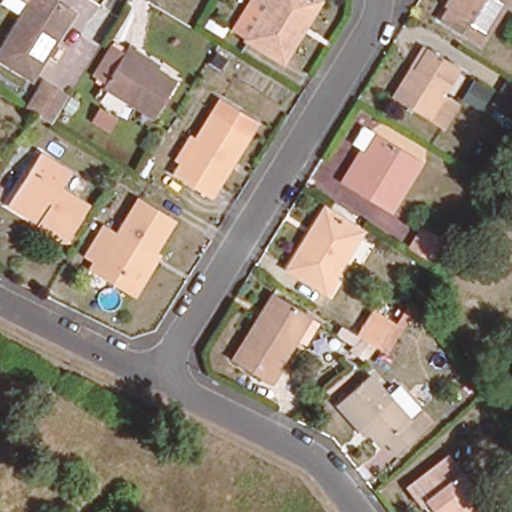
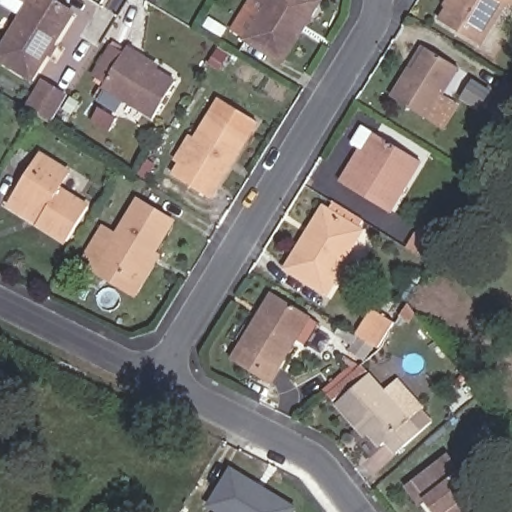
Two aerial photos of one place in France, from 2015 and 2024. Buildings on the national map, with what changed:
unchanged [(30,82),(0,64),(0,54),(28,9),(14,0),(44,0),(60,10),(52,23),(64,29),(52,48),(57,51),(50,62),(45,59),(30,82)]
unchanged [(265,0),(315,0),(301,23),(282,54),(247,33),(265,0)]
unchanged [(435,16),(442,4),(438,2),(439,0),(500,0),(475,40),(435,16)]
unchanged [(503,0),(508,0),(507,2),(503,0)]
unchanged [(223,28),(218,36),(205,29),(210,20),(223,28)]
unchanged [(433,88),(446,95),(433,120),(383,90),(400,61),(413,39),(418,41),(449,60),(433,88)]
unchanged [(153,121),(103,91),(107,86),(94,78),(111,49),(125,58),(129,53),(142,60),(160,71),(157,77),(174,88),(153,121)]
unchanged [(501,74),(507,78),(512,80),(512,113),(511,115),(492,104),(485,100),(501,74)]
unchanged [(55,124),(35,111),(50,88),(71,101),(55,124)]
unchanged [(189,140),(196,144),(220,104),(256,128),(211,200),(175,178),(181,168),(174,164),(189,140)]
unchanged [(415,160),(385,209),(335,179),(343,166),(354,148),(361,151),(371,134),(415,160)]
unchanged [(469,150),(486,159),(481,170),(464,161),(469,150)]
unchanged [(15,195),(40,154),(64,168),(71,172),(63,186),(61,189),(87,205),(67,239),(38,222),(10,204),(15,195)]
unchanged [(137,299),(95,274),(100,266),(86,258),(103,229),(117,238),(137,204),(171,224),(152,254),(159,259),(137,299)]
unchanged [(333,273),(336,274),(328,289),(289,267),(308,235),(324,208),(329,211),(359,229),(333,273)]
unchanged [(405,245),(418,225),(439,238),(427,259),(405,245)]
unchanged [(280,374),(272,388),(232,363),(271,297),(304,318),(309,320),(294,345),(278,373),(280,374)]
unchanged [(381,344),(374,340),(355,328),(369,304),(389,315),(395,319),(381,344)]
unchanged [(368,378),(383,397),(395,387),(424,422),(383,456),(338,402),(368,378)]
unchanged [(422,504),(408,487),(441,462),(448,456),(461,473),(483,501),(469,512),(427,512),(422,504)]
new [(231,468),(295,506),(291,512),(221,512),(209,505),(231,468)]

